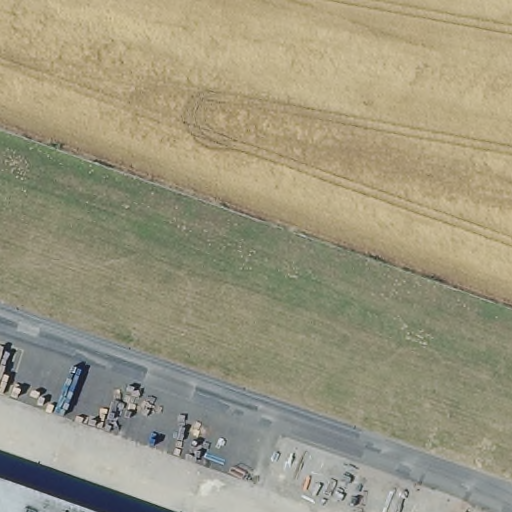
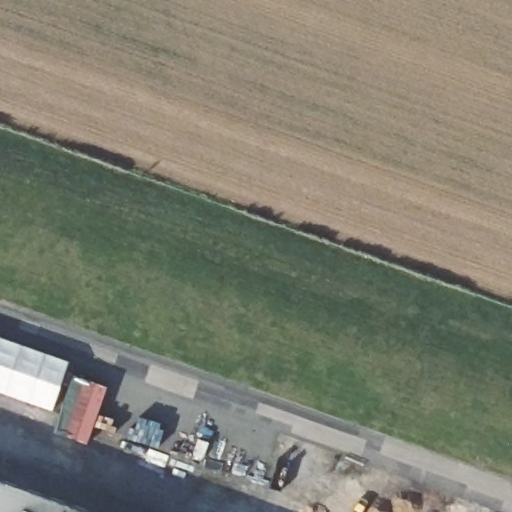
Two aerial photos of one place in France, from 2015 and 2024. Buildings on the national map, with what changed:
new [(68,362),(51,411),(0,393),(0,338),(68,362)]
new [(75,440),(53,433),(72,376),(94,383),(75,440)]
unchanged [(102,512),(0,512),(0,477),(102,512)]

